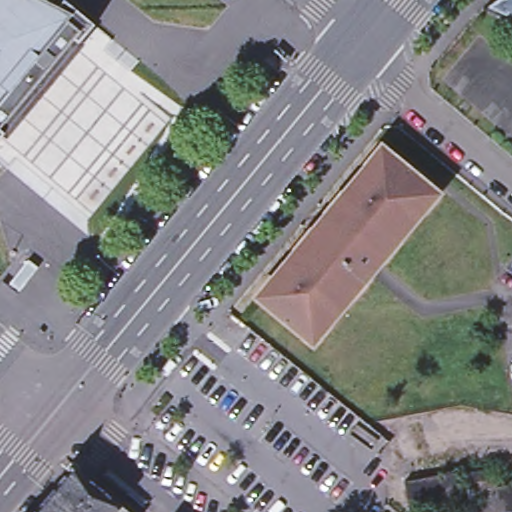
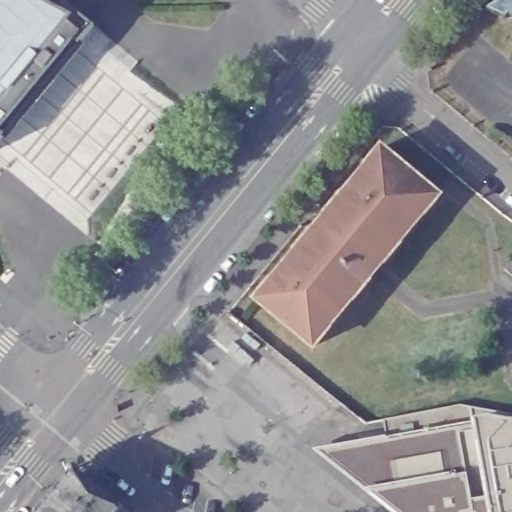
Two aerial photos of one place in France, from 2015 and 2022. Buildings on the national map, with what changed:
unchanged [(69,4),(98,27),(0,147),(0,0),(44,0),(63,11),(69,4)]
unchanged [(488,13),(505,0),(509,0),(512,3),(512,20),(509,24),(488,13)]
unchanged [(441,195),(426,212),(424,212),(399,242),(400,244),(385,261),(377,254),(361,273),(369,280),(354,297),(328,328),(329,328),(314,346),(256,298),(271,281),(298,251),(296,250),(311,232),(321,240),(336,220),(328,212),(342,195),(343,196),(369,165),(368,164),(383,146),(441,195)]
new [(473,422),(512,415),(512,512),(394,512),(371,492),(318,450),(473,422)]
unchanged [(120,507),(121,512),(40,512),(75,471),(120,507)]
demolished [(463,480),(487,475),(489,486),(494,485),(512,482),(512,512),(469,512),(463,480)]
demolished [(469,512),(408,512),(404,489),(455,480),(456,482),(463,480),(469,512)]

